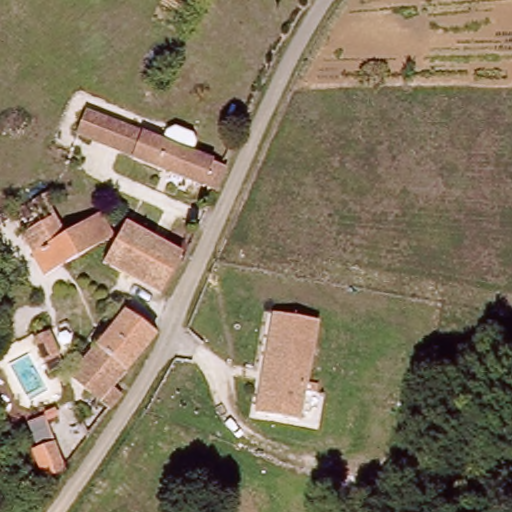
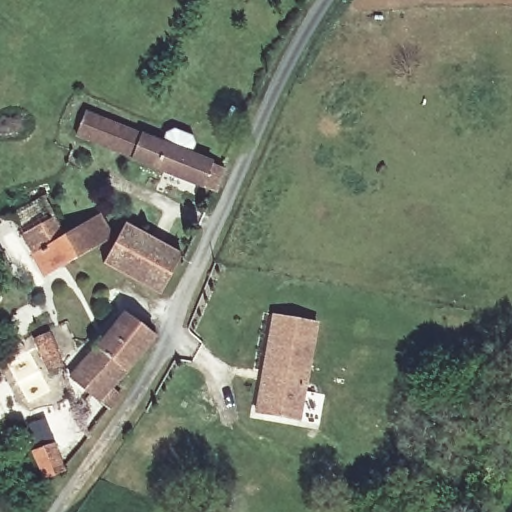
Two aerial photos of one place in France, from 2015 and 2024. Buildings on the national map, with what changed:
unchanged [(127,164),(71,140),(80,117),(136,140),(127,164)]
unchanged [(157,149),(161,138),(169,134),(186,141),(189,149),(185,160),(219,174),(210,197),(127,164),(136,140),(157,149)]
unchanged [(77,152),(75,159),(67,156),(69,149),(77,152)]
unchanged [(115,232),(111,240),(41,276),(20,234),(57,216),(67,230),(100,211),(115,232)]
unchanged [(176,261),(174,262),(155,299),(98,268),(119,229),(176,261)]
unchanged [(149,336),(107,387),(115,395),(105,408),(95,400),(94,402),(65,377),(120,314),(149,336)]
unchanged [(298,421),(256,413),(274,315),(316,322),(298,421)]
unchanged [(62,366),(49,372),(34,338),(48,332),(62,366)]
unchanged [(64,471),(44,479),(32,451),(53,443),(64,471)]

